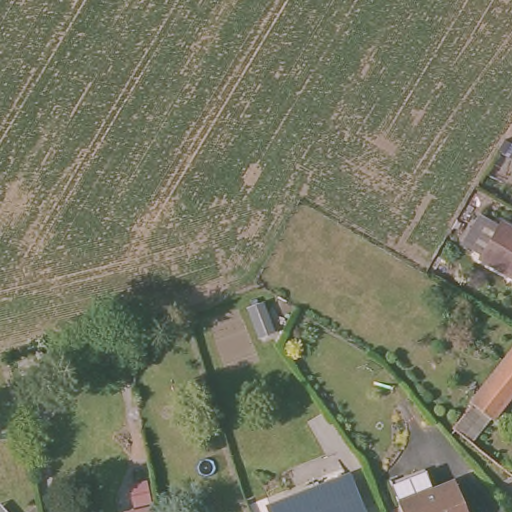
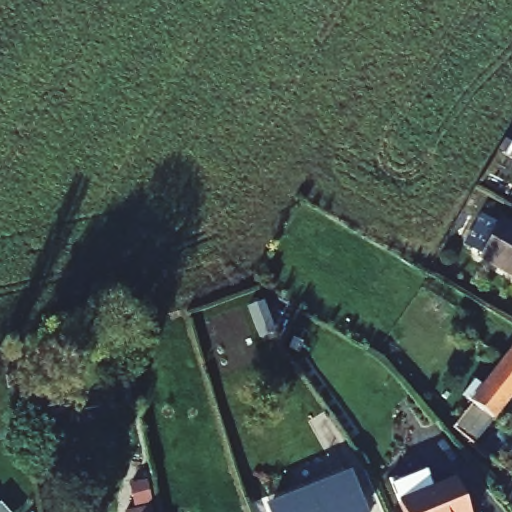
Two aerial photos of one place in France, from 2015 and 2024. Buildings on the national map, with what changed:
unchanged [(512,151),(502,145),(509,133),(512,135),(512,151)]
unchanged [(512,230),(512,278),(485,262),(486,259),(476,253),(467,248),(485,217),(494,223),(504,229),(505,226),(512,230)]
unchanged [(481,428),(462,452),(442,437),(507,357),(512,361),(512,391),(482,428),(481,428)]
unchanged [(461,512),(395,512),(386,489),(420,474),(428,493),(450,484),(461,512)]
unchanged [(343,480),(355,512),(265,512),(265,511),(343,480)]
unchanged [(147,510),(148,512),(138,512),(147,510)]

